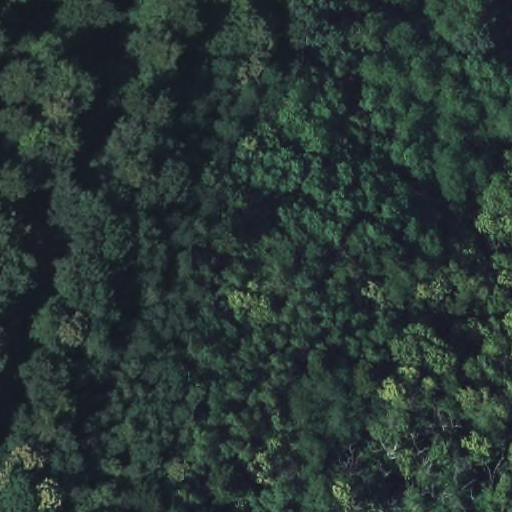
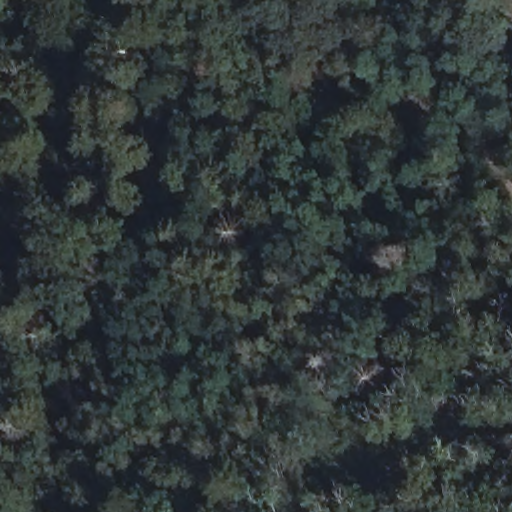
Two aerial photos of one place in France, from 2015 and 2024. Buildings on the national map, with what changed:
[]

